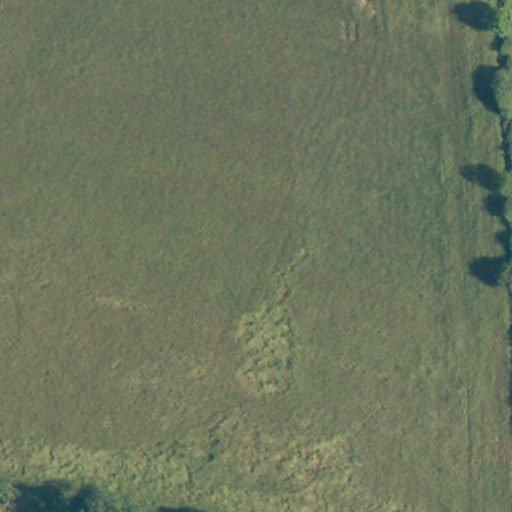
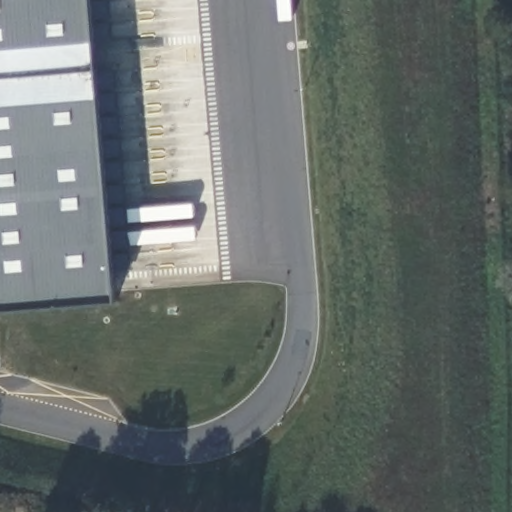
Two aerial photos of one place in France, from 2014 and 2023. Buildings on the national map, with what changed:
new [(0,310),(0,0),(94,0),(117,300),(0,310)]

